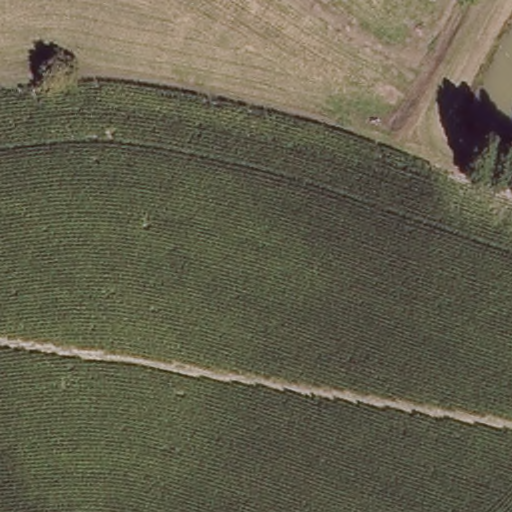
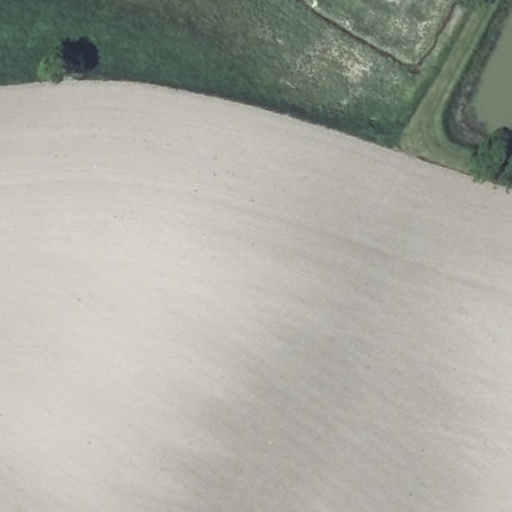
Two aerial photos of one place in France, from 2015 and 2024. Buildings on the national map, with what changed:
[]

